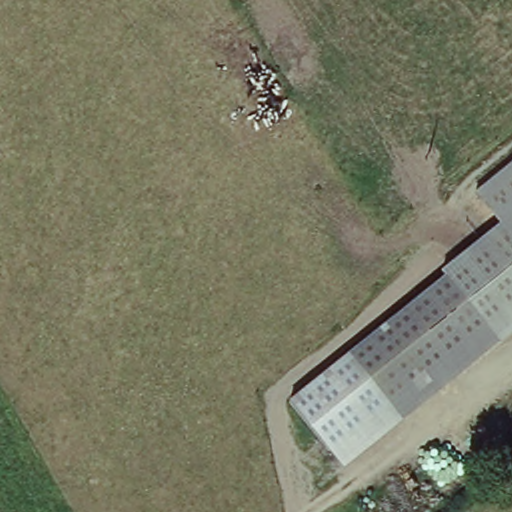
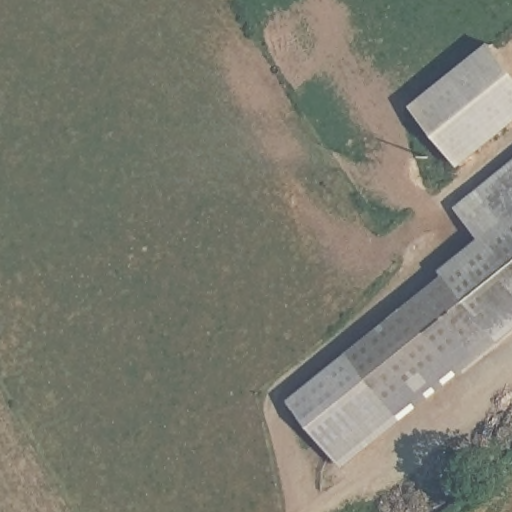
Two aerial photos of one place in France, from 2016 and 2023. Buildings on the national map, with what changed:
new [(512,62),(512,125),(462,164),(413,104),(495,39),(512,62)]
unchanged [(479,189),(512,161),(512,333),(410,418),(397,404),(355,354),(451,273),(447,268),(482,236),(457,207),(479,189)]
unchanged [(397,404),(410,418),(344,469),(289,401),(352,350),(355,354),(397,404)]

